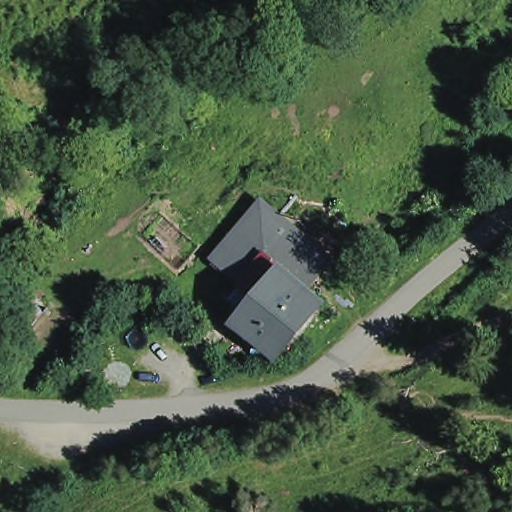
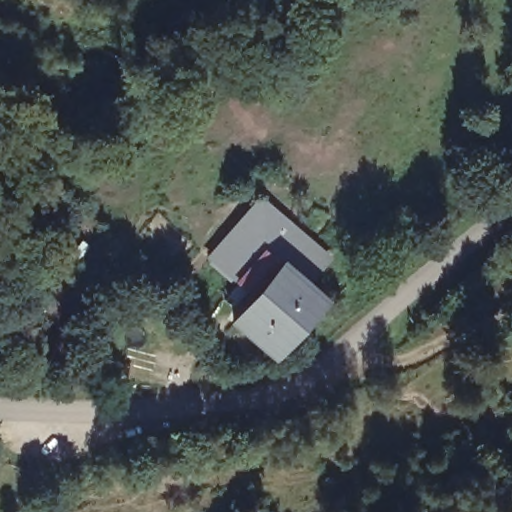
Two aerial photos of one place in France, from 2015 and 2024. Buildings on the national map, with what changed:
unchanged [(267,246),(241,275),(219,253),(216,251),(242,223),(264,201),(267,203),(329,261),(307,284),(267,246)]
unchanged [(307,284),(324,300),(275,354),(240,321),(263,296),(241,275),(267,246),(307,284)]
unchanged [(339,265),(353,279),(342,291),(327,276),(339,265)]

